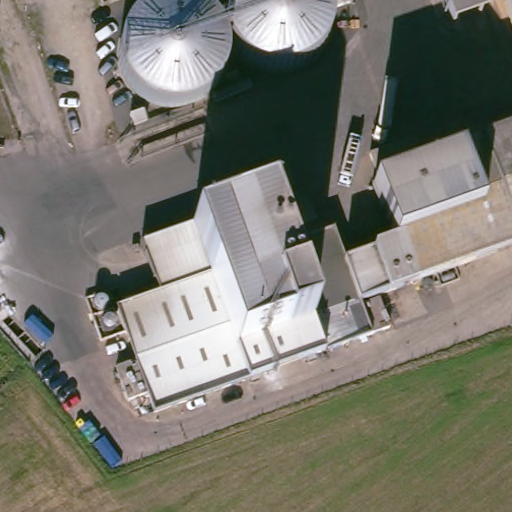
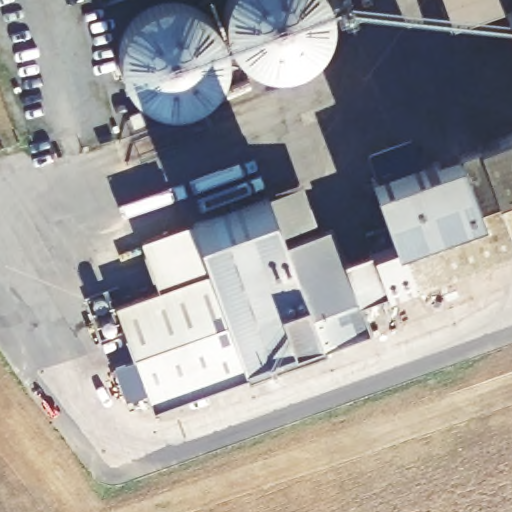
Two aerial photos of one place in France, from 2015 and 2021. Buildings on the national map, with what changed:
unchanged [(352,4),(335,10),(332,0),(351,0),(352,4)]
unchanged [(501,18),(448,37),(435,0),(512,0),(512,51),(501,18)]
unchanged [(148,129),(136,133),(131,121),(144,117),(148,129)]
unchanged [(374,154),(418,138),(427,163),(512,133),(512,248),(382,294),(394,326),(157,409),(149,389),(133,395),(121,362),(139,356),(119,302),(164,287),(145,235),(274,189),(293,241),(338,225),(349,257),(374,248),(368,230),(389,222),(375,181),(384,178),(374,154)]

